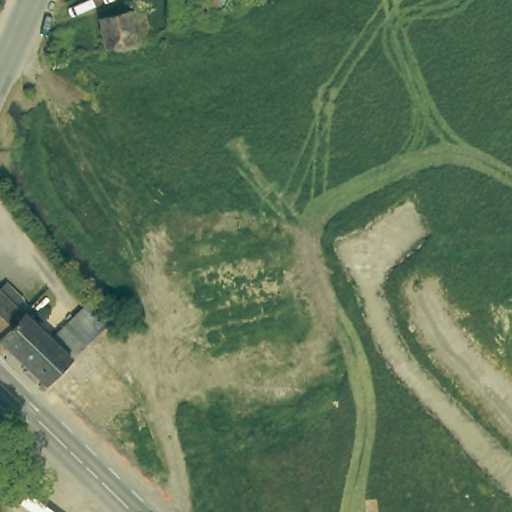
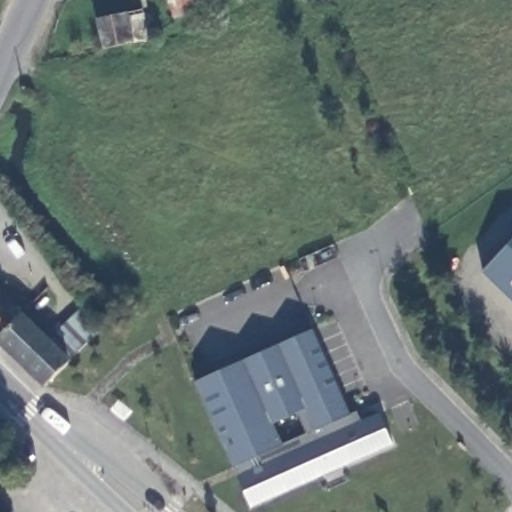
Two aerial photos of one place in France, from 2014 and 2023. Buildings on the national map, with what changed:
unchanged [(106,6),(146,0),(151,28),(110,35),(106,6)]
unchanged [(173,0),(196,0),(175,7),(173,0)]
new [(512,241),(512,300),(482,271),(512,241)]
unchanged [(33,297),(50,282),(61,295),(35,322),(1,290),(15,277),(33,297)]
unchanged [(84,337),(48,376),(43,381),(0,339),(0,288),(1,290),(35,322),(56,342),(78,318),(90,330),(95,325),(101,318),(106,325),(95,335),(93,333),(87,340),(84,337)]
new [(310,332),(350,414),(356,411),(361,422),(378,413),(393,447),(251,508),(195,382),(310,332)]
demolished [(155,475),(48,376),(84,337),(87,340),(136,386),(168,462),(155,475)]

